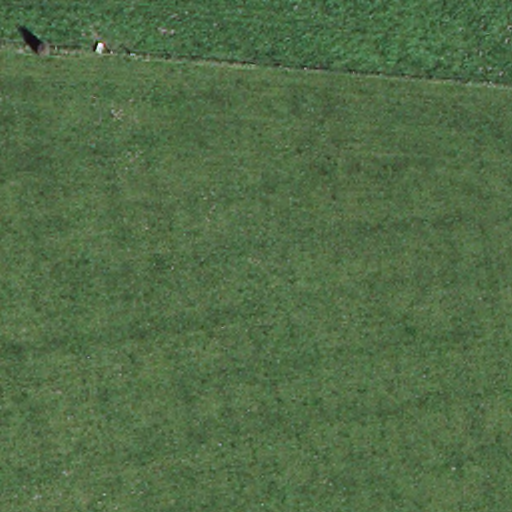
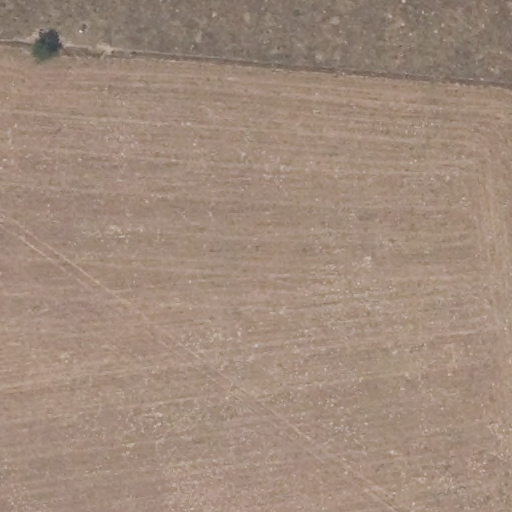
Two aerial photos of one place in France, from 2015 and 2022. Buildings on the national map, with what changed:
[]

